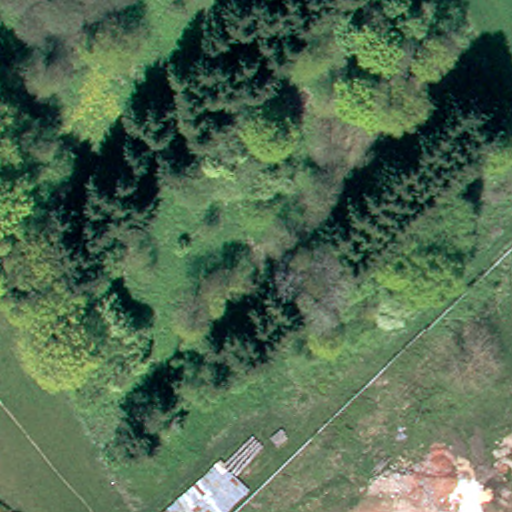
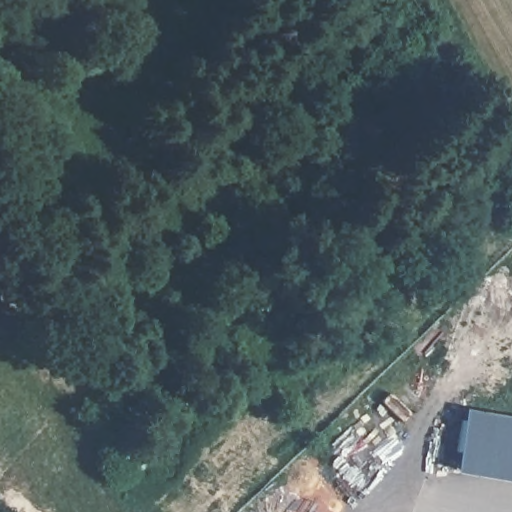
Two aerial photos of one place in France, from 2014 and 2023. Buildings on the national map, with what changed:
new [(512,417),(512,482),(450,471),(462,409),(512,417)]

